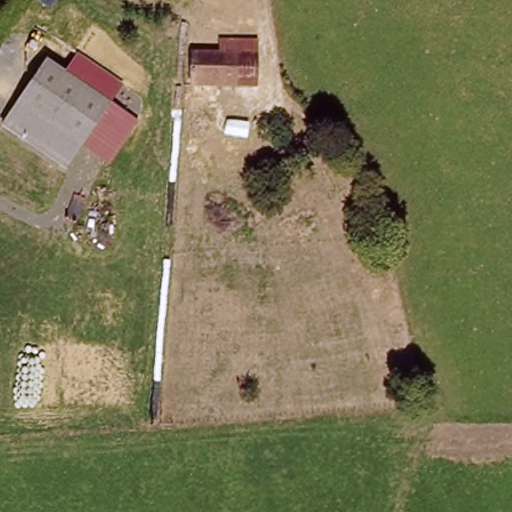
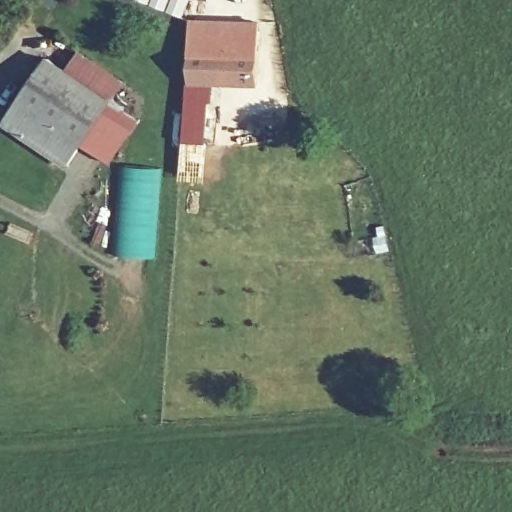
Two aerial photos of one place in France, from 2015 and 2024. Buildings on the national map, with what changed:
new [(138,0),(189,0),(182,17),(138,0)]
new [(257,88),(212,87),(212,103),(207,103),(205,146),(182,145),(189,20),(260,22),(257,88)]
demolished [(193,80),(193,48),(219,50),(220,38),(262,40),(260,81),(193,80)]
unchanged [(80,51),(123,80),(111,98),(67,71),(80,51)]
unchanged [(2,120),(43,56),(111,98),(70,163),(2,120)]
unchanged [(111,98),(141,118),(111,163),(82,145),(111,98)]
new [(155,259),(110,257),(117,166),(162,167),(155,259)]

